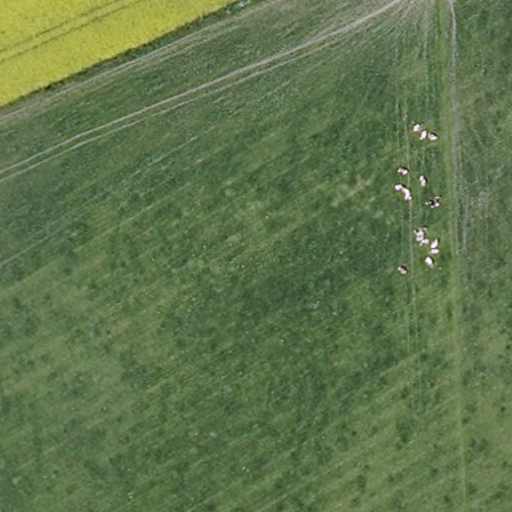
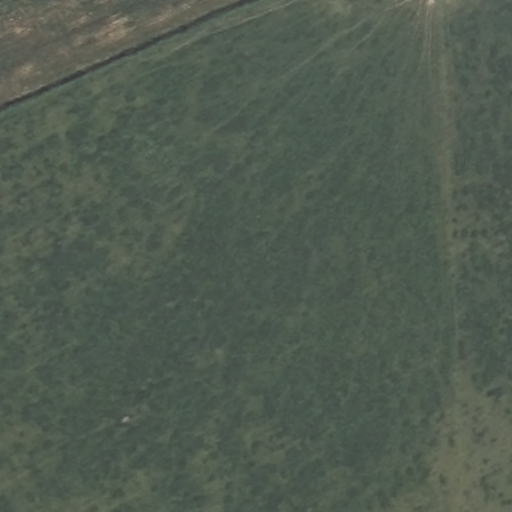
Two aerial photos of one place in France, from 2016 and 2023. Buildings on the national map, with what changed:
[]

